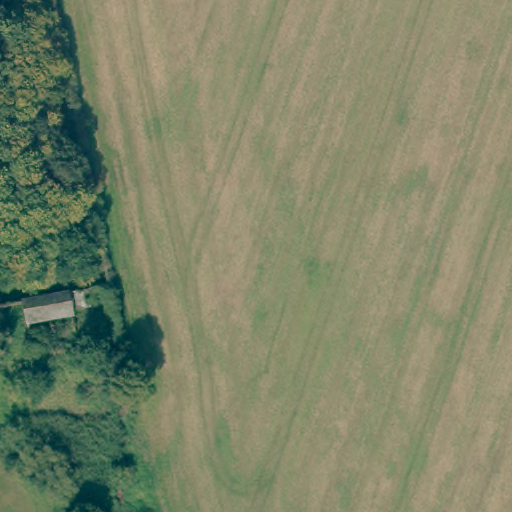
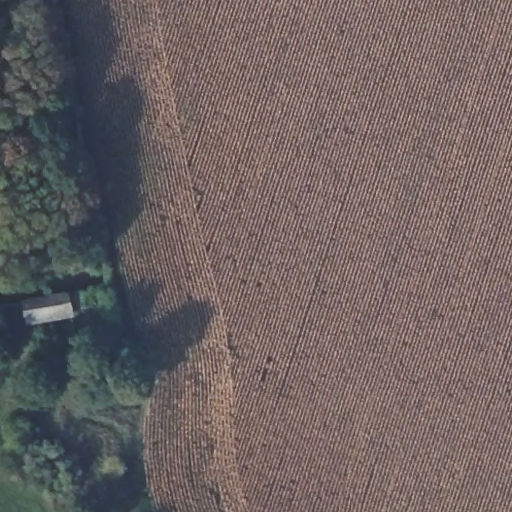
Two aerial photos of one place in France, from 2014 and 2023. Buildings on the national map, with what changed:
unchanged [(2,326),(0,313),(0,306),(76,287),(81,310),(2,326)]

